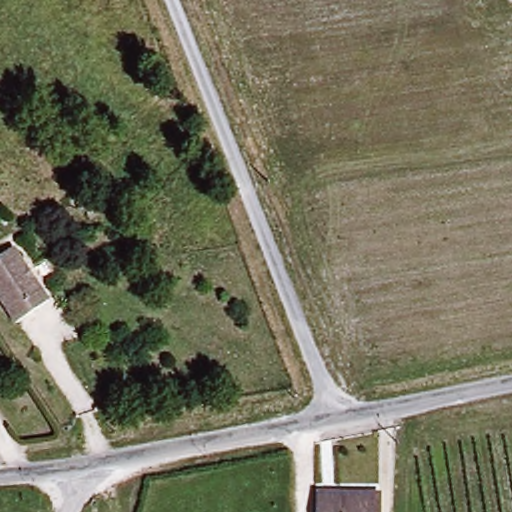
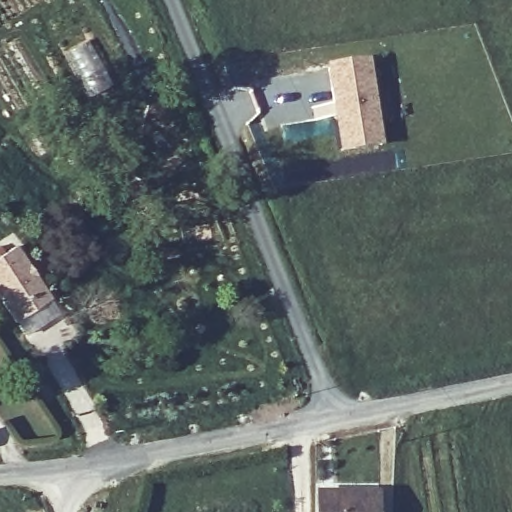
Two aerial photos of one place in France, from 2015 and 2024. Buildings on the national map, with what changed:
new [(322,63),(372,55),(386,149),(338,156),(322,63)]
unchanged [(0,305),(0,254),(8,249),(45,300),(12,323),(0,305)]
unchanged [(375,491),(374,512),(316,512),(316,489),(375,491)]

